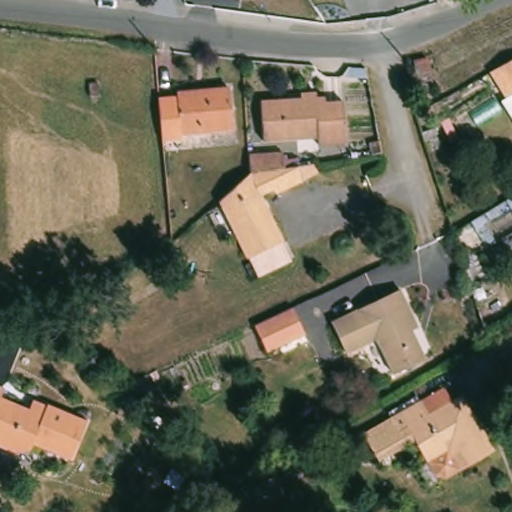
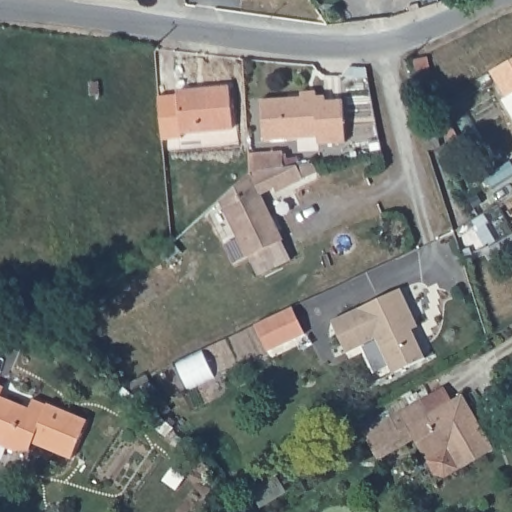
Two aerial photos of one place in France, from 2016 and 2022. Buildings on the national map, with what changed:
unchanged [(498,101),(502,99),(487,74),(500,66),(511,60),(512,60),(512,125),(498,101)]
unchanged [(231,130),(180,135),(180,140),(160,142),(156,99),(175,97),(175,95),(227,90),(231,130)]
unchanged [(322,103),(340,102),(343,145),(315,146),(315,140),(261,142),(258,102),(299,100),(298,94),(313,93),(313,99),(322,98),(322,103)]
unchanged [(246,259),(245,260),(217,203),(248,175),(247,156),(281,154),(282,170),(305,166),(310,165),(315,175),(310,177),(288,188),(286,184),(259,197),(281,242),(280,242),(289,262),(255,278),(246,259)]
unchanged [(397,291),(415,329),(410,331),(423,361),(391,376),(375,340),(343,355),(329,323),(397,291)]
unchanged [(252,327),(290,309),(302,336),(265,354),(252,327)]
unchanged [(33,448),(19,449),(0,441),(0,382),(8,385),(4,395),(33,407),(37,397),(50,403),(51,402),(91,418),(75,457),(35,442),(33,448)]
unchanged [(428,485),(417,465),(425,460),(415,440),(378,461),(361,433),(448,387),(456,402),(466,397),(495,450),(428,485)]

